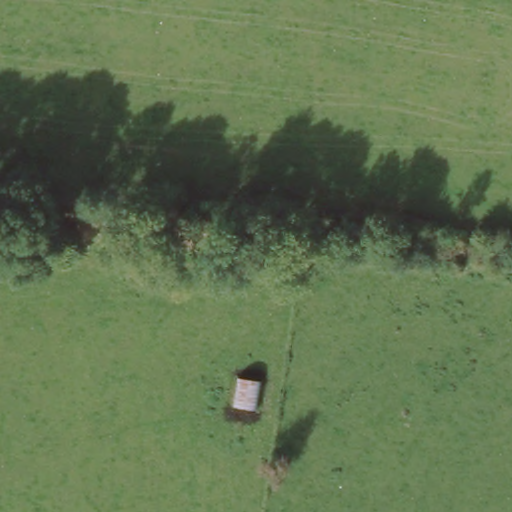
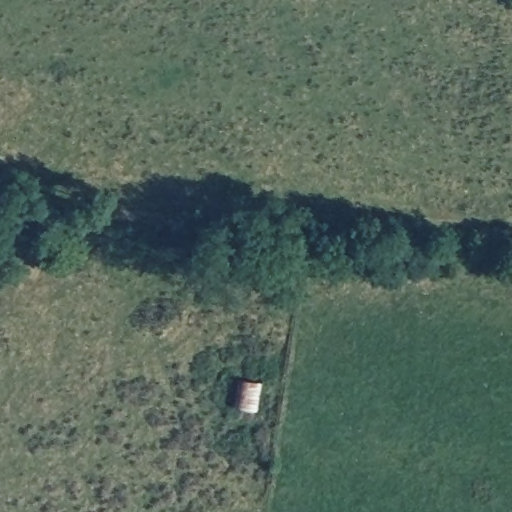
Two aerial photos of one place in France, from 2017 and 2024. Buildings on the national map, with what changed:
unchanged [(259,377),(259,408),(234,409),(238,377),(259,377)]

